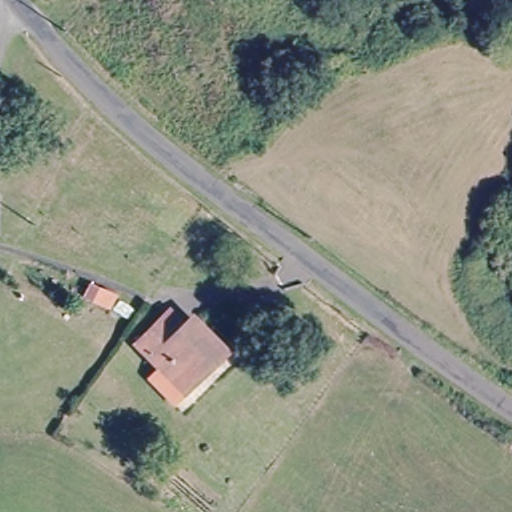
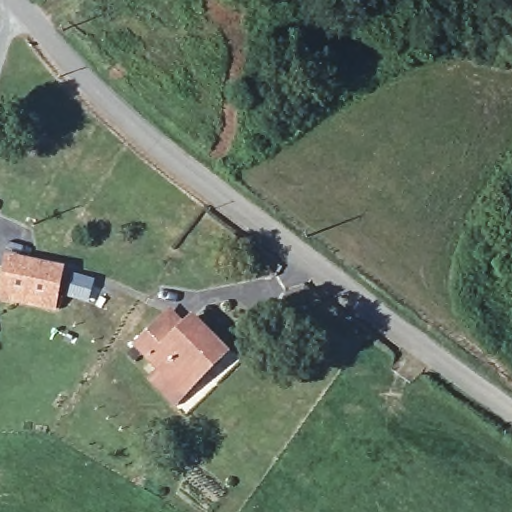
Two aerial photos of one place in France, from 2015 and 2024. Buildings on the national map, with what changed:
new [(90,302),(63,295),(56,312),(0,300),(0,279),(5,251),(66,265),(63,288),(71,271),(96,278),(90,302)]
unchanged [(224,358),(205,382),(210,386),(195,406),(136,362),(155,336),(163,325),(180,338),(187,328),(224,358)]

